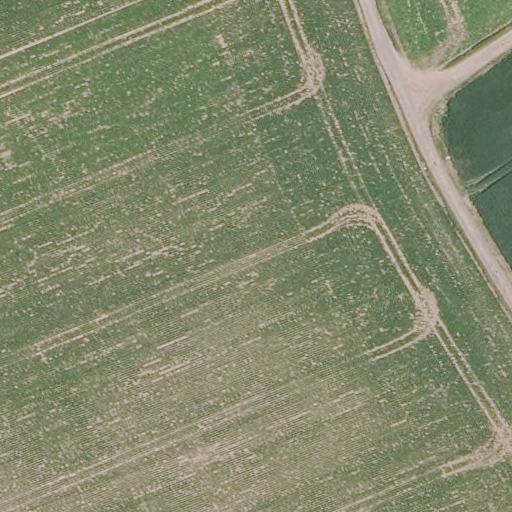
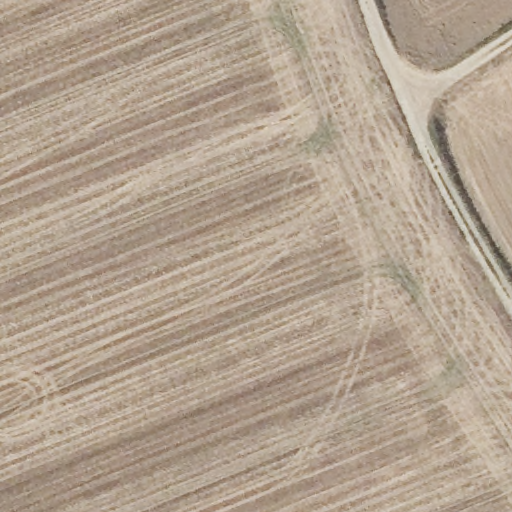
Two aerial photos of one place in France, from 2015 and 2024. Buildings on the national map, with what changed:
[]

